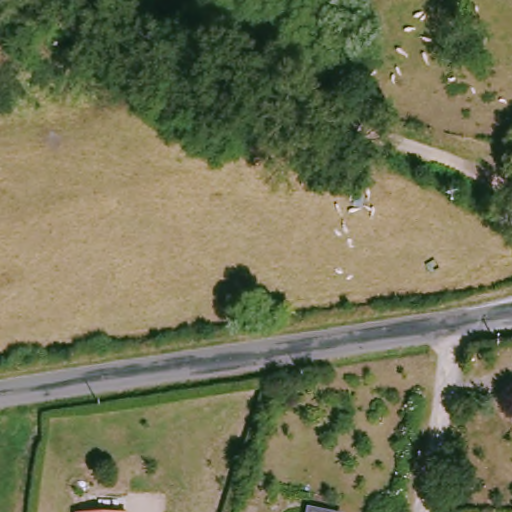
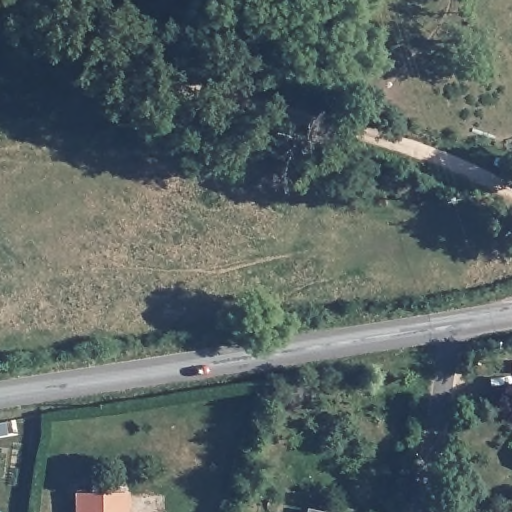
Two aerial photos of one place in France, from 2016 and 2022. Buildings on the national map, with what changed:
new [(75,492),(126,491),(127,512),(75,512),(75,492)]
unchanged [(307,505),(339,511),(339,512),(305,512),(307,505)]

